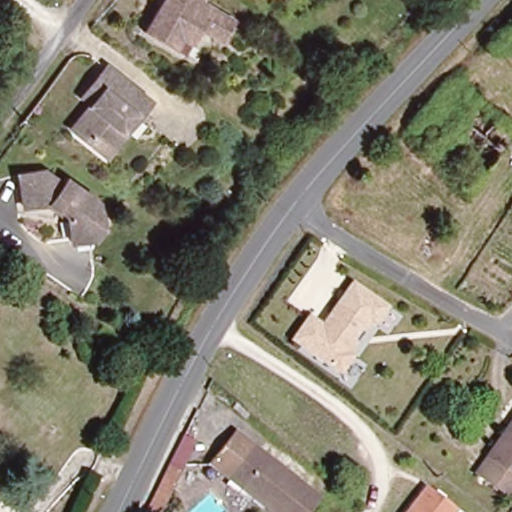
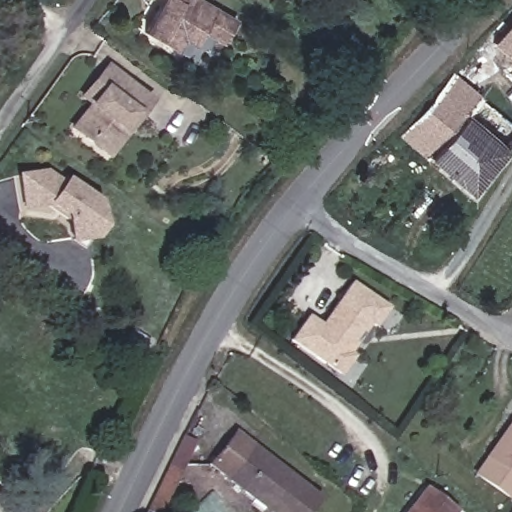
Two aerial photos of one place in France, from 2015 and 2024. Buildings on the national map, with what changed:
unchanged [(198,30),(189,41),(179,34),(168,47),(142,27),(162,0),(199,0),(199,1),(232,25),(218,44),(198,30)]
new [(491,43),(512,19),(512,62),(491,43)]
unchanged [(66,130),(87,105),(78,97),(89,86),(104,66),(148,100),(135,115),(122,130),(107,149),(100,157),(84,144),(66,130)]
new [(429,161),(400,136),(453,74),(481,99),(429,161)]
new [(467,116),(509,150),(470,201),(429,161),(467,116)]
unchanged [(94,202),(98,226),(89,235),(70,238),(65,212),(49,200),(24,207),(19,177),(43,171),(61,186),(65,181),(94,202)]
unchanged [(376,329),(369,325),(351,351),(358,356),(343,378),(289,341),(308,314),(322,323),(353,281),(390,308),(376,329)]
unchanged [(479,466),(512,411),(512,486),(479,466)]
unchanged [(315,500),(305,512),(268,512),(212,462),(239,432),(315,500)]
unchanged [(167,512),(148,512),(172,462),(189,469),(167,512)]
unchanged [(454,509),(452,512),(404,512),(424,486),(454,509)]

